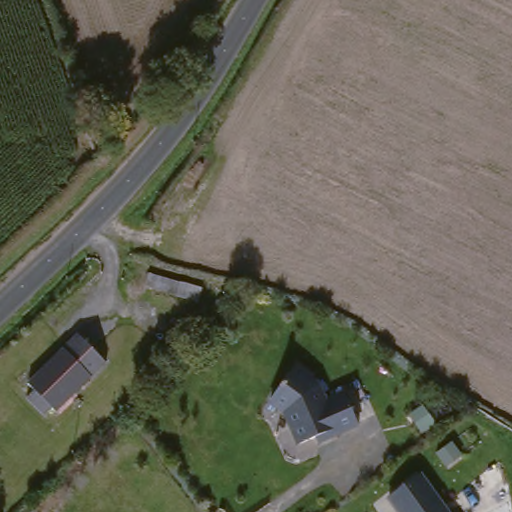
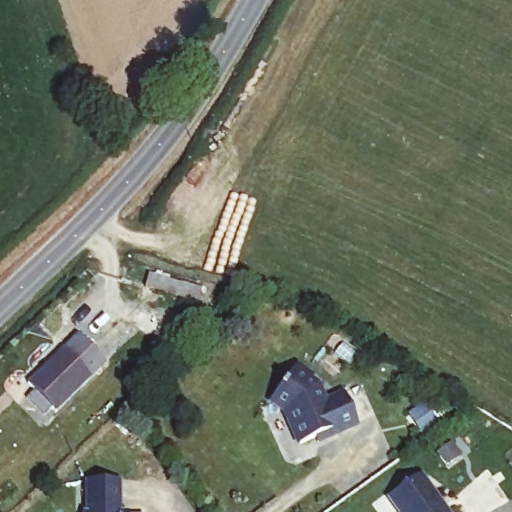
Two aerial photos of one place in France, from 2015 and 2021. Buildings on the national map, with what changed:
unchanged [(196,304),(151,290),(154,273),(200,288),(196,304)]
unchanged [(101,368),(46,421),(38,413),(28,422),(15,408),(23,400),(14,390),(69,336),(101,368)]
unchanged [(292,366),(309,378),(306,382),(313,386),(321,402),(340,393),(356,424),(336,434),(333,429),(298,446),(288,427),(291,426),(286,417),(266,403),(292,366)]
unchanged [(419,477),(446,512),(399,512),(389,500),(419,477)]
new [(120,510),(128,510),(128,512),(86,512),(84,481),(120,481),(120,510)]

